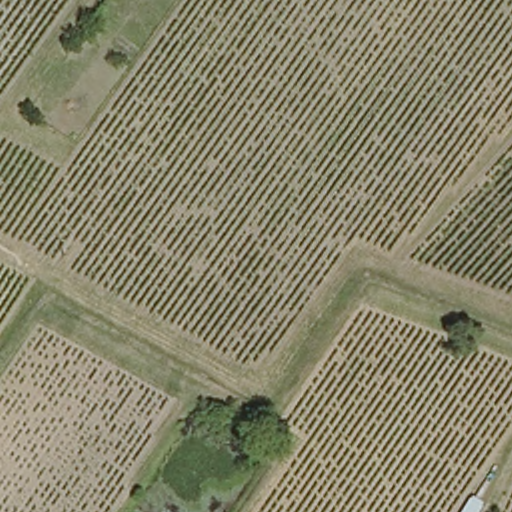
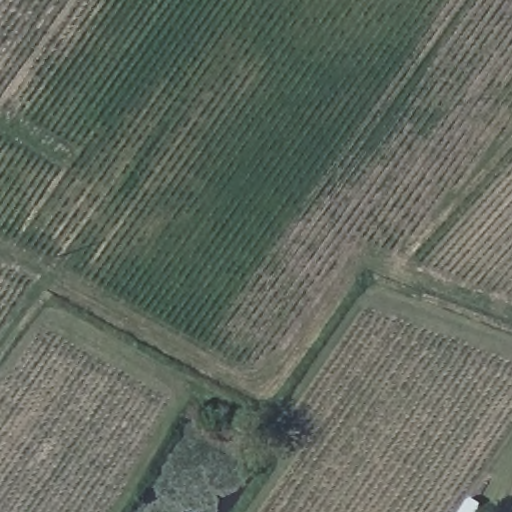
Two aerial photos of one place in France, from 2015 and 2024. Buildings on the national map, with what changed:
unchanged [(480,499),(473,512),(457,512),(469,494),(480,499)]

